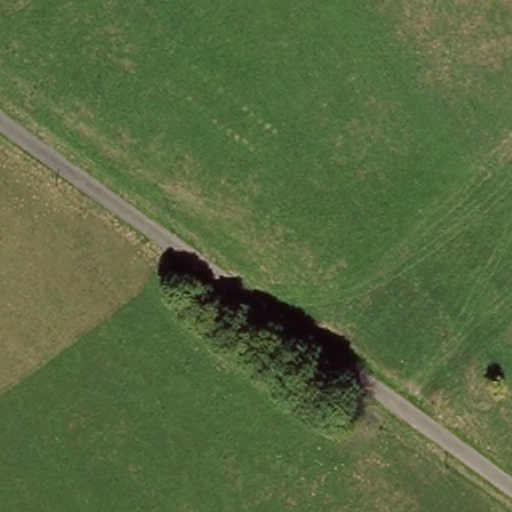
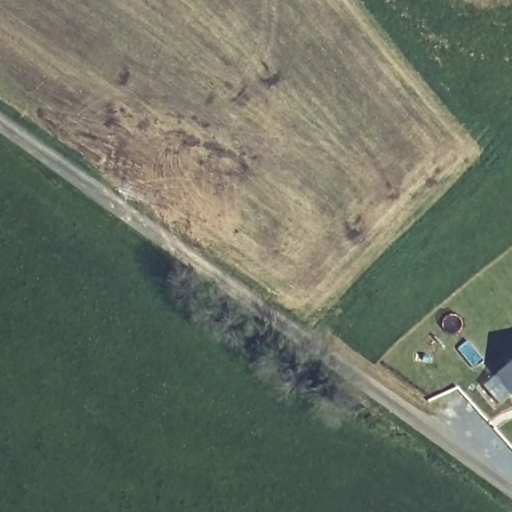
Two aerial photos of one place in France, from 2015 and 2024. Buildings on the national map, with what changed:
new [(512,356),(512,396),(492,372),(512,356)]

